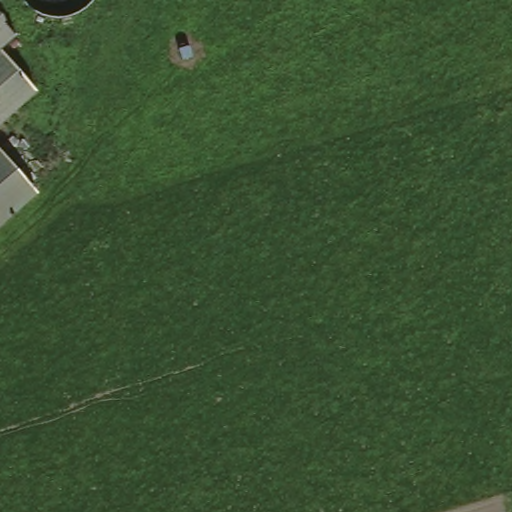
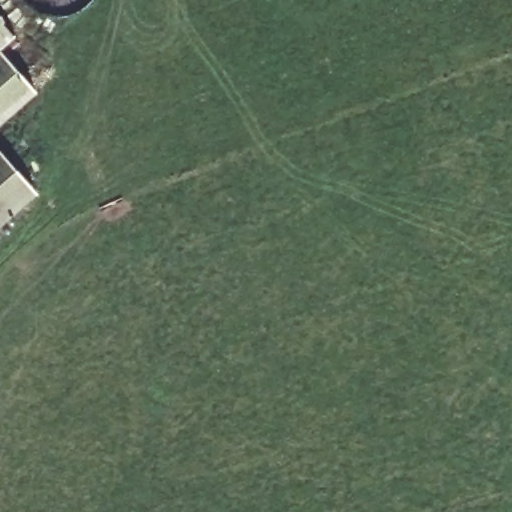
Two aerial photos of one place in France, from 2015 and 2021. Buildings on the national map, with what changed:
unchanged [(1,44),(40,87),(0,122),(0,13),(16,30),(1,44)]
unchanged [(0,146),(37,188),(0,221),(0,146)]

